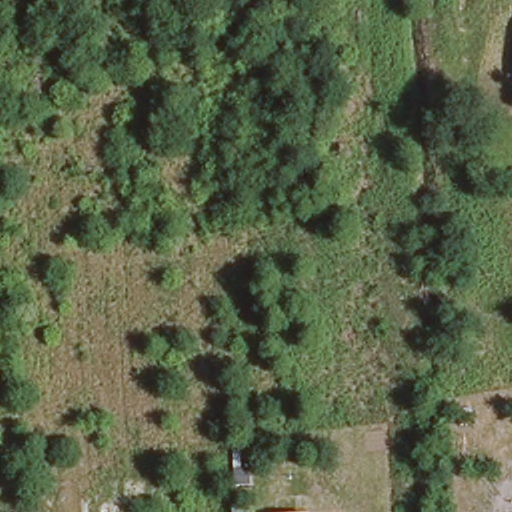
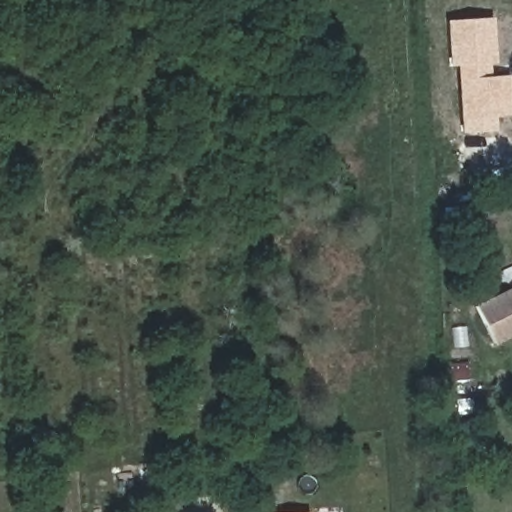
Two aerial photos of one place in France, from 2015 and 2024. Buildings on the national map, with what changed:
new [(462,134),(458,65),(451,66),(448,20),(487,18),(490,76),(510,75),(512,107),(512,116),(495,116),(496,131),(462,134)]
new [(475,305),(512,288),(512,337),(495,346),(475,305)]

